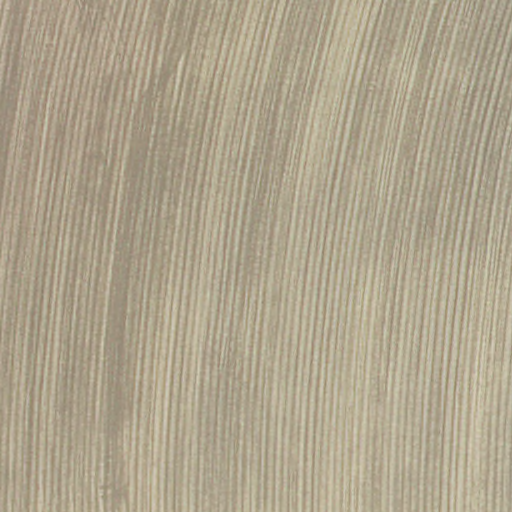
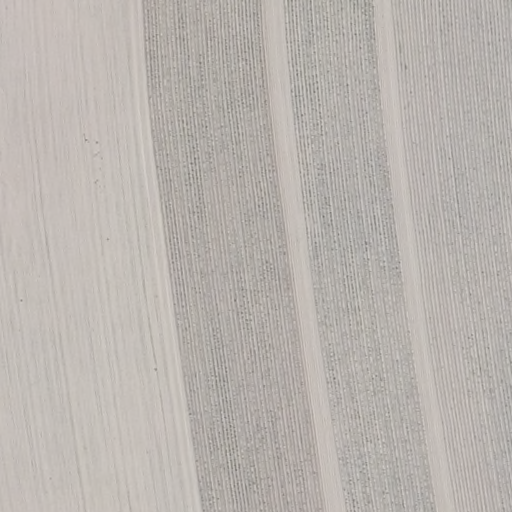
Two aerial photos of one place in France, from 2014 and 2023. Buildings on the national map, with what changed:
[]

